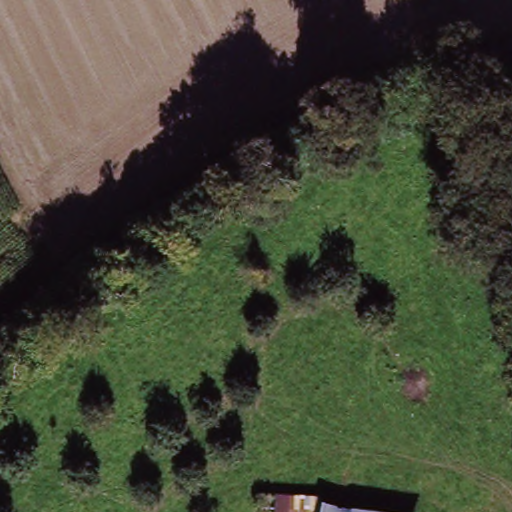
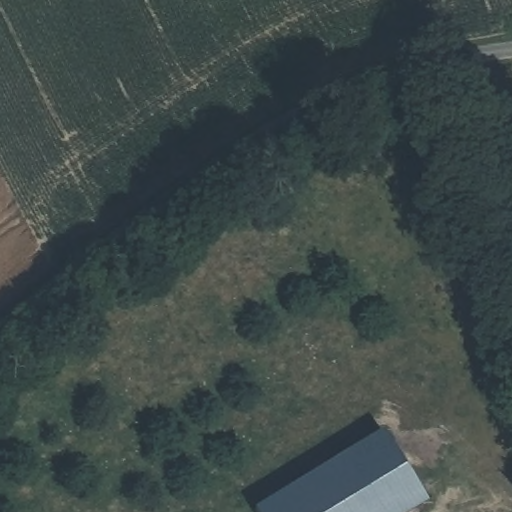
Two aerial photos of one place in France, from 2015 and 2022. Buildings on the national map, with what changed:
new [(257,512),(255,508),(382,430),(426,502),(409,512),(257,512)]
demolished [(256,512),(258,495),(321,504),(320,511),(319,512),(256,512)]

